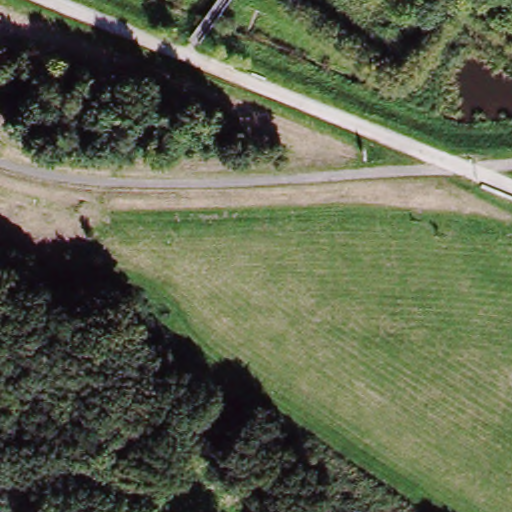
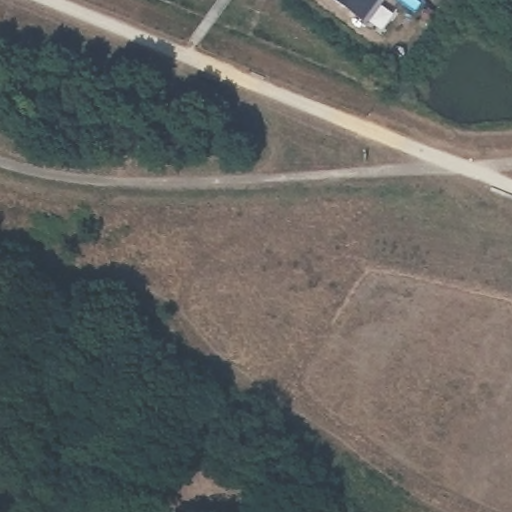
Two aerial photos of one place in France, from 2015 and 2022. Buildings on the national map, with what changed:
new [(369,25),(334,0),(387,0),(369,25)]

